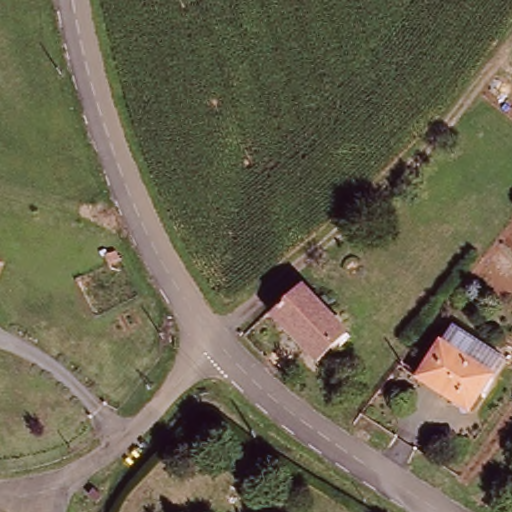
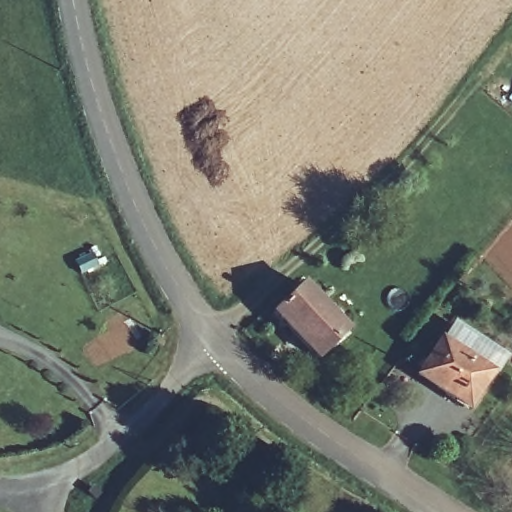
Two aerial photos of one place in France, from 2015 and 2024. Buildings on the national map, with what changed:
unchanged [(318,354),(272,310),(302,286),(342,328),(318,354)]
unchanged [(503,366),(492,380),(490,378),(465,408),(419,372),(454,328),(503,366)]

